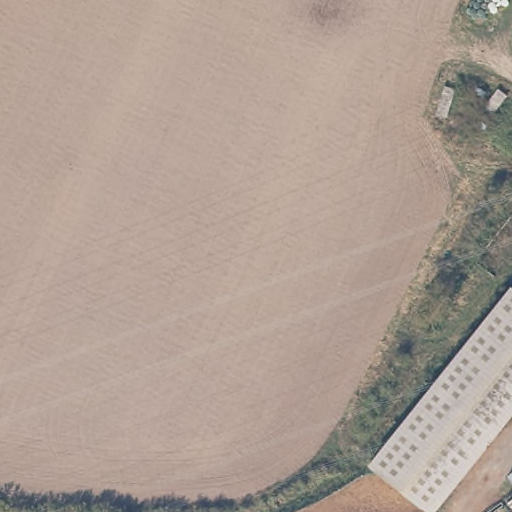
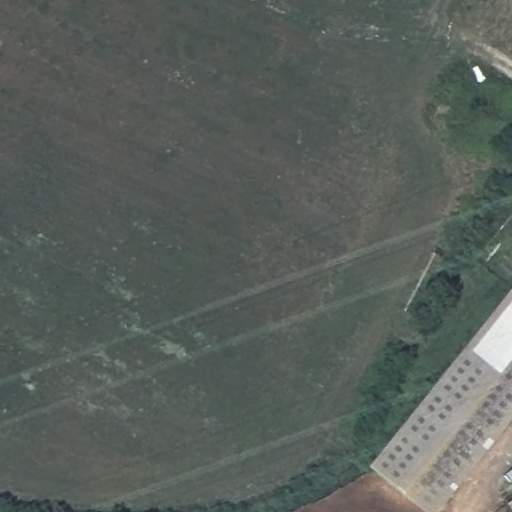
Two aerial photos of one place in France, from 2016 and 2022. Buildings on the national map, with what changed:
unchanged [(475,448),(430,509),(406,491),(376,470),(377,470),(412,421),(422,408),(429,398),(512,286),(512,398),(475,448)]
unchanged [(512,504),(512,512),(507,512),(505,510),(512,505),(512,504)]

